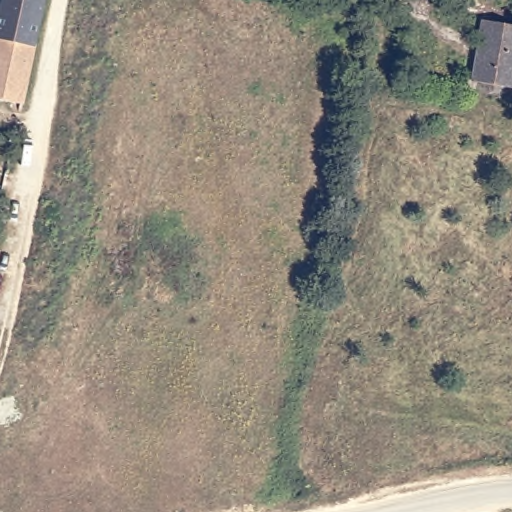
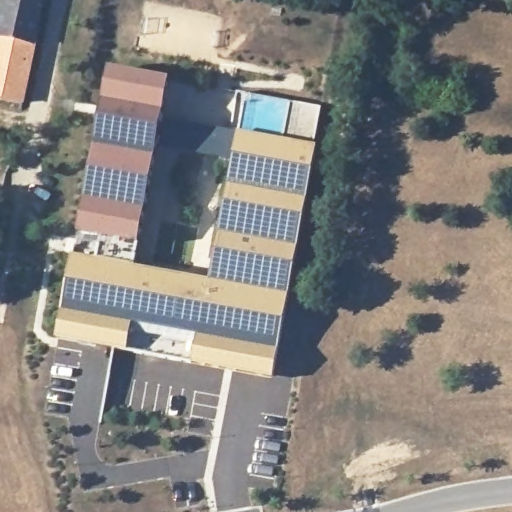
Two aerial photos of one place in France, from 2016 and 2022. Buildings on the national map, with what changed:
unchanged [(0,37),(0,8),(2,0),(43,0),(33,44),(0,37)]
unchanged [(512,20),(512,83),(471,76),(482,15),(512,20)]
unchanged [(39,45),(25,105),(0,100),(0,37),(33,44),(39,45)]
new [(75,234),(106,66),(168,77),(160,121),(234,132),(235,130),(316,146),(271,380),(125,351),(55,338),(75,234)]

